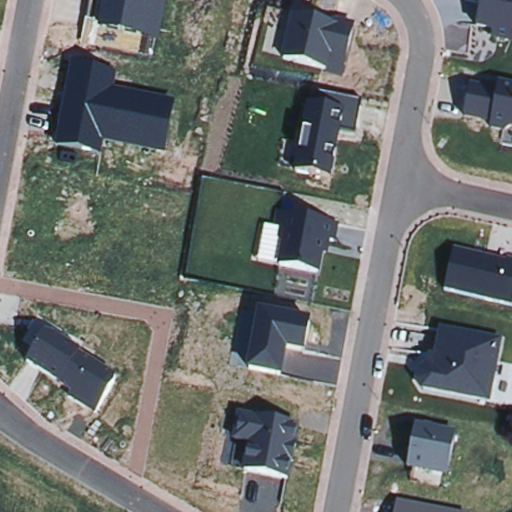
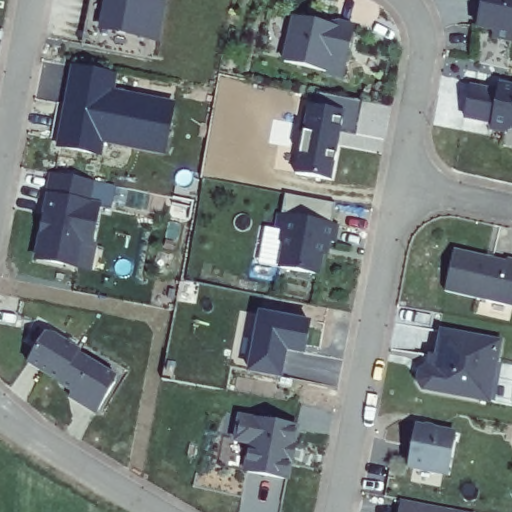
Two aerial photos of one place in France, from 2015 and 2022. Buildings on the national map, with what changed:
unchanged [(98,33),(102,0),(167,0),(161,40),(98,33)]
unchanged [(491,38),(492,30),(477,27),(482,0),(512,0),(512,42),(491,38)]
unchanged [(293,16),(353,30),(341,78),(282,65),(293,16)]
unchanged [(164,154),(103,145),(100,157),(56,150),(71,66),(116,75),(113,93),(174,103),(164,154)]
unchanged [(496,90),(498,82),(512,85),(512,128),(511,128),(503,134),(489,132),(491,124),(463,119),(470,85),(496,90)]
unchanged [(356,134),(343,131),(334,184),(294,175),(308,104),(315,106),(317,94),(362,102),(356,134)]
new [(90,267),(78,265),(37,257),(41,231),(46,210),(53,172),(115,184),(110,208),(98,206),(91,241),(95,241),(90,267)]
unchanged [(281,248),(279,242),(281,231),(275,229),(277,213),(338,225),(334,247),(329,247),(327,255),(322,255),(319,277),(278,268),(281,248)]
unchanged [(512,261),(512,306),(443,292),(454,248),(512,261)]
unchanged [(303,354),(286,351),(282,378),(244,371),(253,309),(309,319),(303,354)]
unchanged [(503,338),(491,404),(424,393),(417,381),(419,369),(427,366),(429,354),(435,354),(439,329),(503,338)]
unchanged [(97,407),(26,366),(45,331),(115,370),(97,407)]
unchanged [(299,425),(289,482),(244,474),(249,448),(234,445),(240,413),(299,425)]
unchanged [(415,423),(457,430),(449,476),(407,468),(415,423)]
unchanged [(456,512),(395,512),(398,501),(456,512)]

